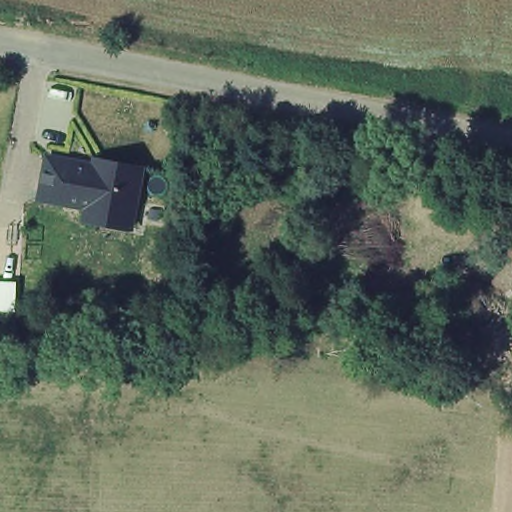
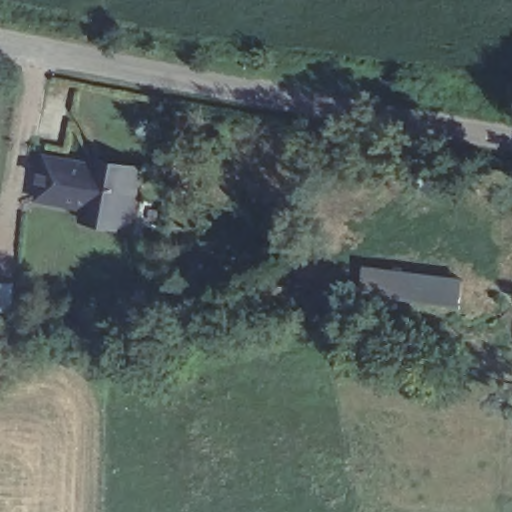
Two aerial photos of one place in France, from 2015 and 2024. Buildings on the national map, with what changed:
unchanged [(49,156),(96,162),(97,157),(148,167),(137,232),(86,222),(87,210),(42,201),(49,156)]
new [(462,280),(458,307),(362,293),(366,267),(462,280)]

